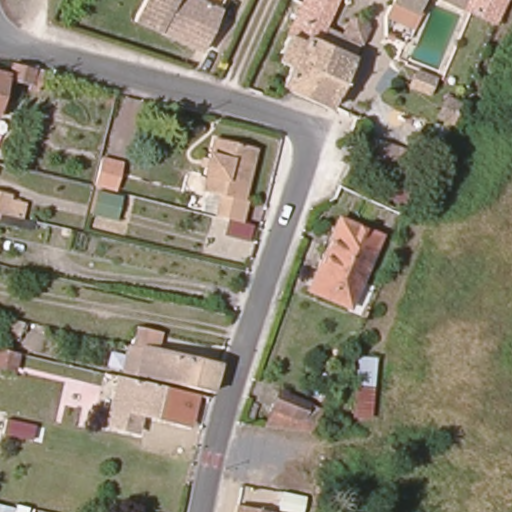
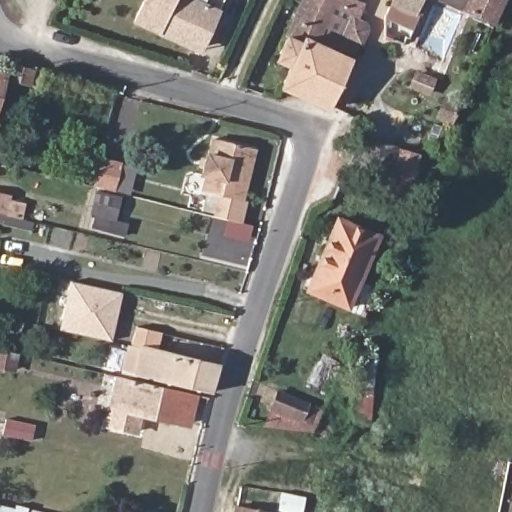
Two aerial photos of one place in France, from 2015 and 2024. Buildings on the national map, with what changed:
unchanged [(196,44),(133,18),(141,0),(221,0),(218,8),(201,46),(196,44)]
unchanged [(353,12),(362,16),(366,28),(357,45),(353,54),(329,109),(280,88),(278,87),(285,65),(286,65),(275,60),(273,59),(292,20),(293,20),(294,21),(300,11),(312,17),(316,8),(319,0),(335,0),(321,29),(336,36),(344,17),(353,12)]
unchanged [(393,0),(475,0),(468,14),(427,4),(417,19),(391,5),(393,0)]
unchanged [(414,67),(437,76),(428,96),(407,86),(414,67)]
unchanged [(45,76),(39,95),(28,92),(30,87),(12,82),(15,69),(45,76)]
unchanged [(0,109),(0,77),(7,79),(0,109)]
unchanged [(461,100),(450,124),(433,118),(444,93),(461,100)]
unchanged [(371,134),(422,152),(407,192),(385,184),(389,171),(361,161),(371,134)]
unchanged [(208,174),(206,174),(208,166),(201,164),(203,157),(209,158),(211,152),(214,152),(217,137),(257,147),(244,200),(248,201),(245,222),(208,213),(212,193),(205,191),(208,174)]
unchanged [(122,163),(115,190),(95,185),(102,158),(122,163)]
unchanged [(0,213),(0,190),(12,193),(13,198),(25,201),(23,217),(0,213)]
new [(99,190),(119,195),(113,220),(93,215),(99,190)]
unchanged [(316,265),(335,220),(375,236),(346,308),(315,296),(306,292),(316,265)]
new [(112,341),(59,329),(71,280),(122,292),(112,341)]
unchanged [(130,345),(134,327),(158,332),(154,351),(216,365),(208,390),(125,369),(130,345)]
unchanged [(12,371),(0,369),(0,348),(16,351),(12,371)]
unchanged [(376,354),(370,418),(353,416),(358,353),(376,354)]
unchanged [(186,422),(139,410),(136,425),(109,419),(119,376),(194,393),(186,422)]
unchanged [(312,428),(265,424),(280,387),(323,405),(312,428)]
new [(36,424),(32,441),(3,435),(7,417),(36,424)]
new [(29,511),(28,512),(0,512),(0,504),(29,511)]
unchanged [(272,512),(235,512),(237,504),(243,505),(273,511),(272,512)]

